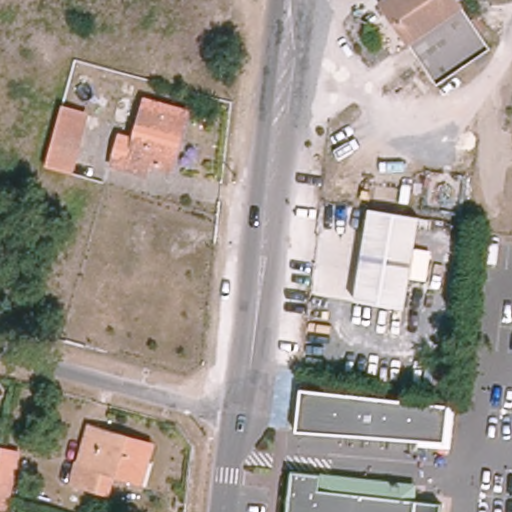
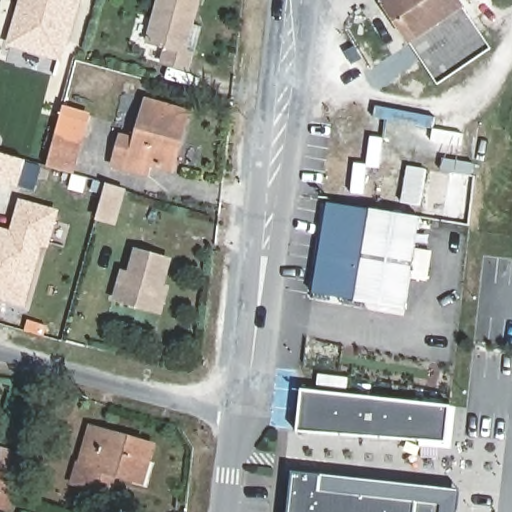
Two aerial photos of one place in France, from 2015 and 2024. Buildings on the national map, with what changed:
new [(78,0),(62,57),(11,43),(23,0),(78,0)]
new [(194,53),(189,74),(160,66),(163,51),(146,46),(158,0),(201,0),(188,51),(194,53)]
unchanged [(438,82),(381,4),(386,0),(459,0),(491,47),(438,82)]
unchanged [(129,169),(113,163),(123,133),(136,138),(146,100),(189,113),(171,171),(150,164),(147,175),(129,169)]
unchanged [(46,167),(63,106),(88,114),(72,176),(46,167)]
new [(26,161),(43,166),(35,192),(0,183),(0,153),(26,161)]
new [(110,185),(127,190),(117,224),(101,219),(110,185)]
new [(48,249),(42,248),(25,308),(0,301),(0,228),(9,231),(18,199),(59,210),(48,249)]
new [(328,204),(370,210),(356,300),(314,294),(328,204)]
unchanged [(405,308),(356,300),(370,208),(420,216),(405,308)]
demolished [(147,229),(138,255),(128,252),(136,224),(147,229)]
new [(121,272),(128,273),(134,250),(172,259),(165,286),(170,287),(162,317),(112,302),(121,272)]
unchanged [(449,404),(451,404),(445,447),(444,446),(297,430),(302,387),(449,404)]
unchanged [(130,486),(75,469),(86,430),(151,449),(145,468),(140,489),(130,486)]
unchanged [(0,498),(0,458),(3,444),(20,449),(11,489),(9,500),(0,498)]
unchanged [(291,473),(319,476),(317,492),(437,506),(440,507),(439,512),(287,512),(291,473)]
unchanged [(439,490),(442,490),(440,507),(437,506),(317,492),(319,476),(439,490)]

